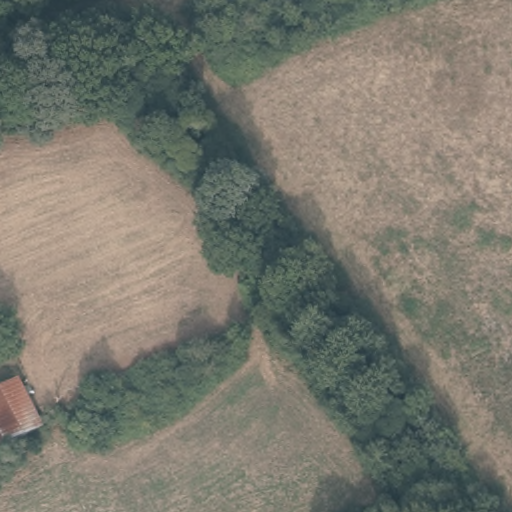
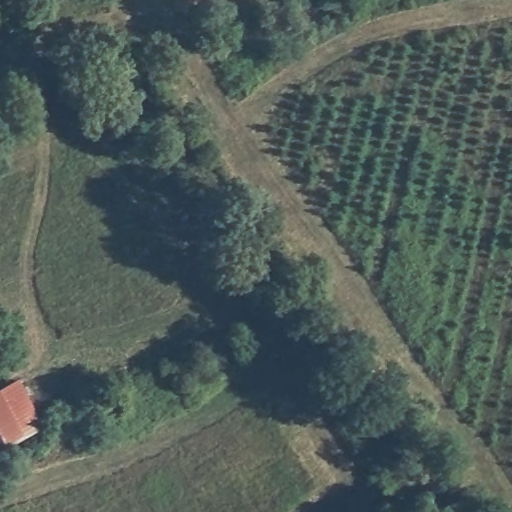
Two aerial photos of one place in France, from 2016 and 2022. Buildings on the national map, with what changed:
unchanged [(44,426),(43,429),(0,450),(0,389),(20,380),(44,426)]

